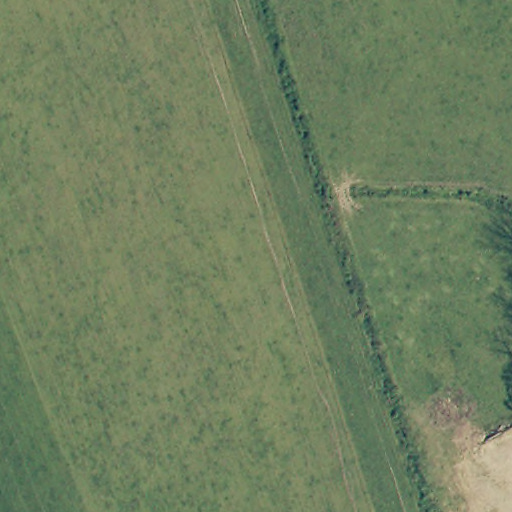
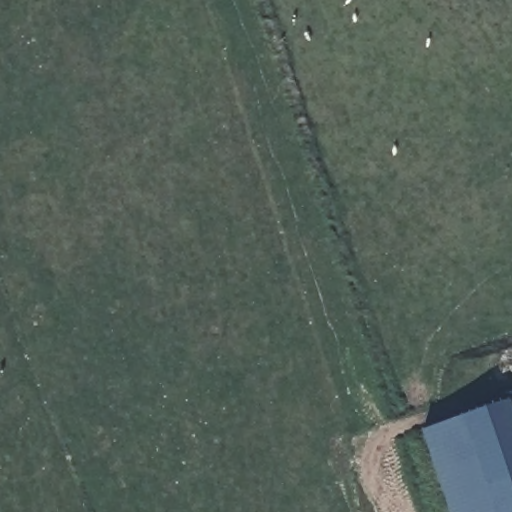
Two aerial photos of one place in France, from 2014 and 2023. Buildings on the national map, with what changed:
new [(511,397),(512,401),(512,512),(451,512),(423,427),(511,397)]

